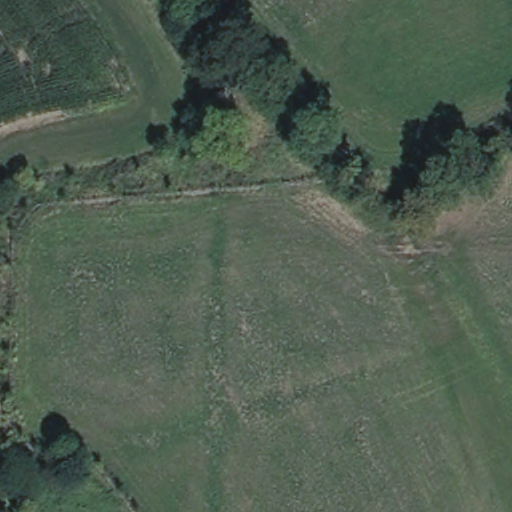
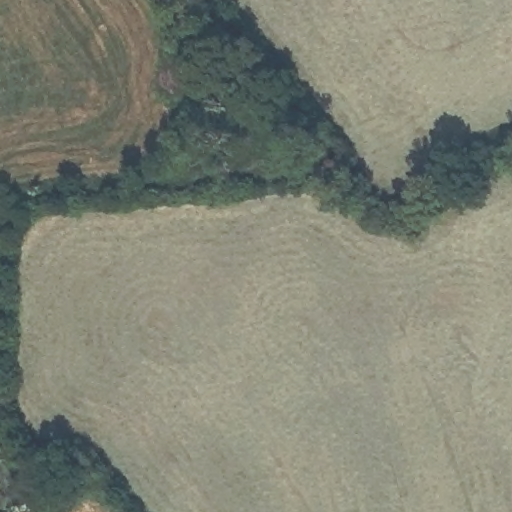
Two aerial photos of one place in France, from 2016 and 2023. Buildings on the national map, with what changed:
[]

